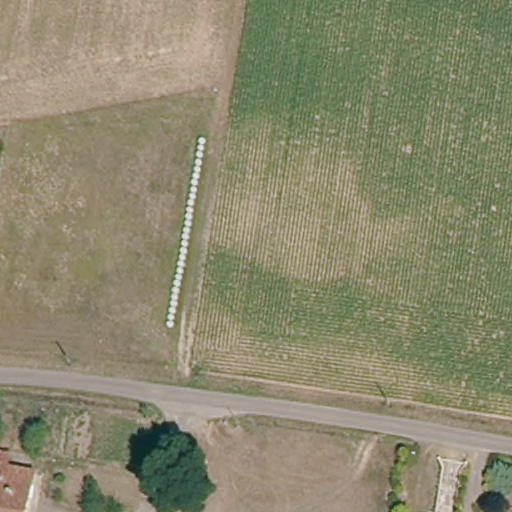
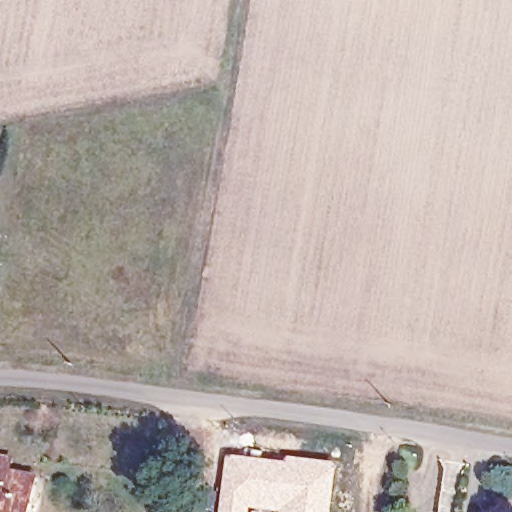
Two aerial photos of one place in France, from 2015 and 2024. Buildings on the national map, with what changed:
new [(227,454),(285,461),(286,456),(337,463),(331,512),(272,512),(251,509),(251,512),(219,512),(227,454)]
unchanged [(0,456),(9,458),(5,477),(0,476),(0,456)]
unchanged [(0,476),(5,477),(28,481),(22,512),(0,512),(0,476)]

